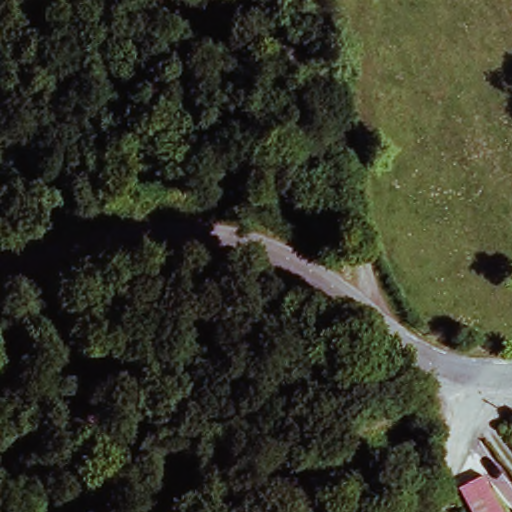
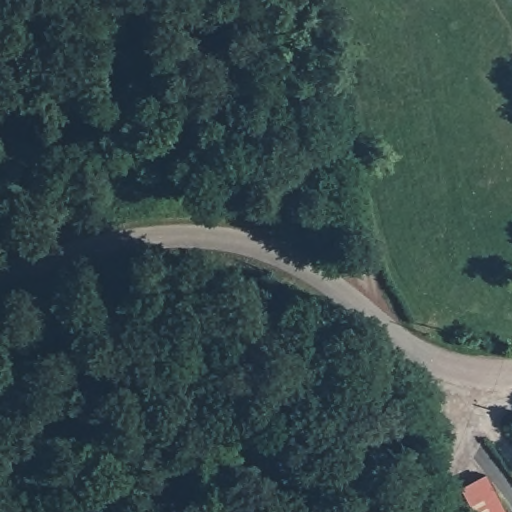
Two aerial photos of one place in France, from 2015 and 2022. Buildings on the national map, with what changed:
unchanged [(476,475),(498,512),(468,512),(452,490),(476,475)]

